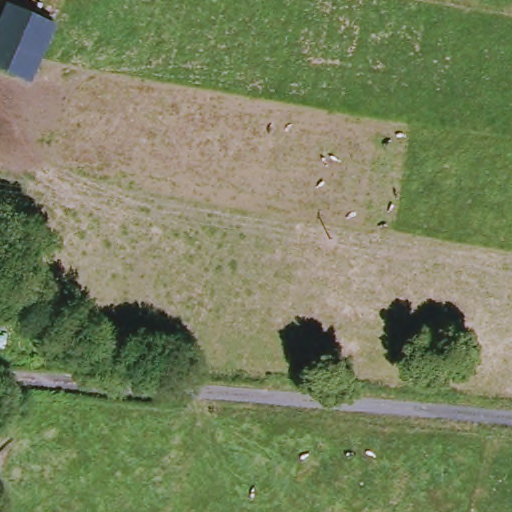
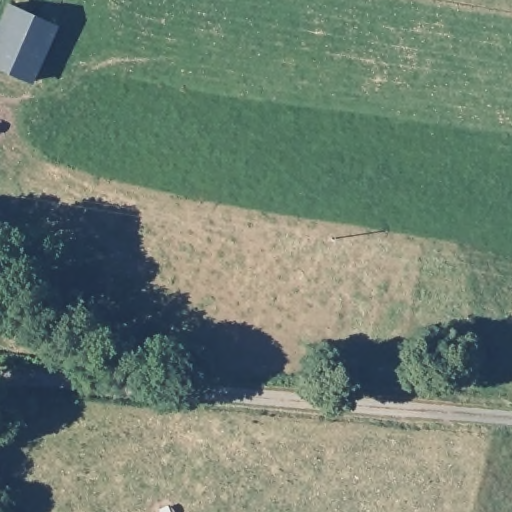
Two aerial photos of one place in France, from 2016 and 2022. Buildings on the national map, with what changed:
unchanged [(0,67),(0,27),(10,4),(55,24),(30,81),(0,67)]

